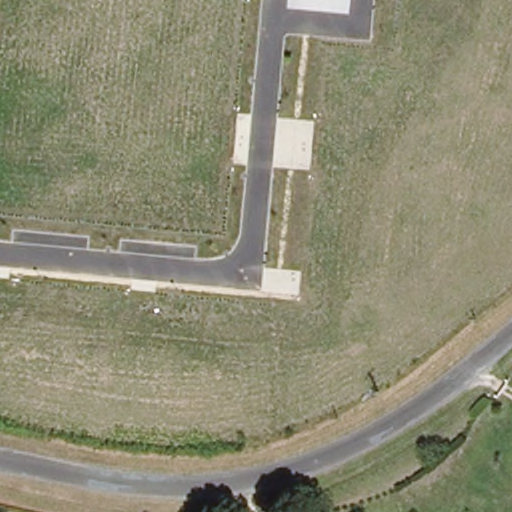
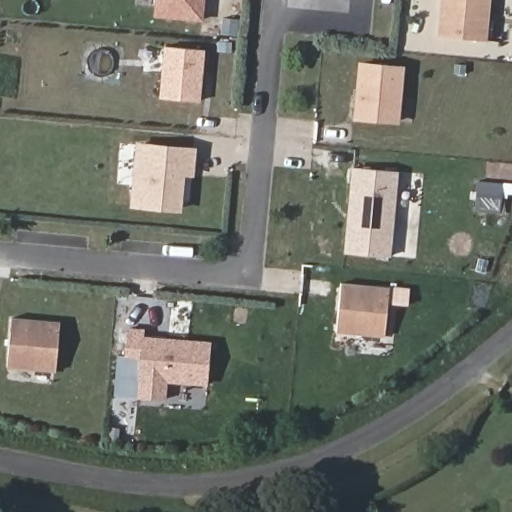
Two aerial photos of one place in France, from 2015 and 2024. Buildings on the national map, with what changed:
new [(207,20),(155,18),(156,0),(209,0),(207,20)]
new [(442,0),(489,0),(486,41),(438,38),(442,0)]
new [(203,52),(203,103),(162,98),(162,48),(203,52)]
new [(417,123),(402,121),(353,117),(358,65),(382,67),(382,64),(392,65),(392,68),(406,69),(403,99),(418,100),(417,123)]
new [(136,142),(197,148),(195,179),(184,178),(182,213),(130,208),(136,142)]
new [(402,176),(395,255),(346,252),(352,171),(402,176)]
new [(388,288),(385,338),(336,333),(341,283),(388,288)]
new [(11,318),(60,322),(57,372),(8,368),(11,318)]
new [(124,329),(141,331),(139,337),(210,343),(208,383),(165,380),(164,399),(138,397),(140,357),(122,356),(124,329)]

